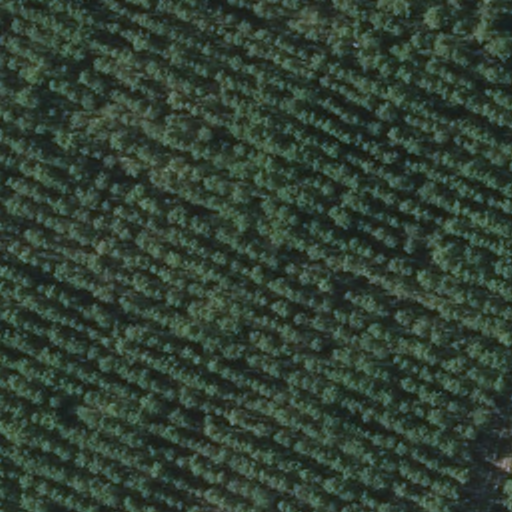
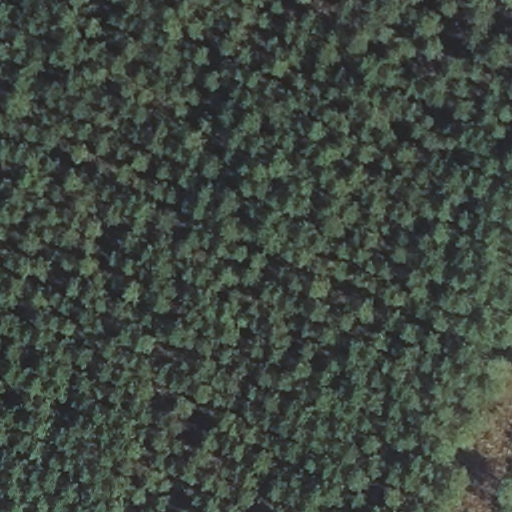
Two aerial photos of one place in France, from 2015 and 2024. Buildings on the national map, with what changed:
[]

